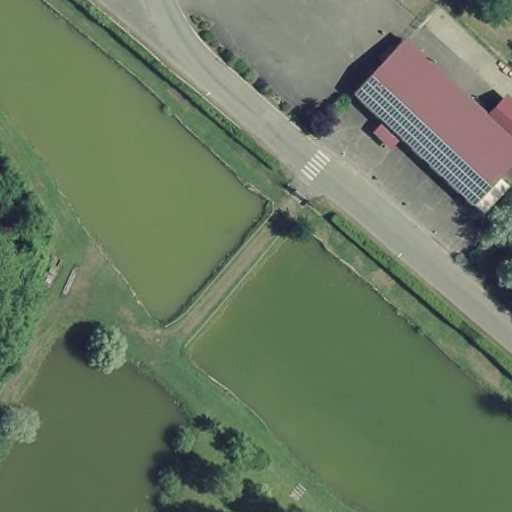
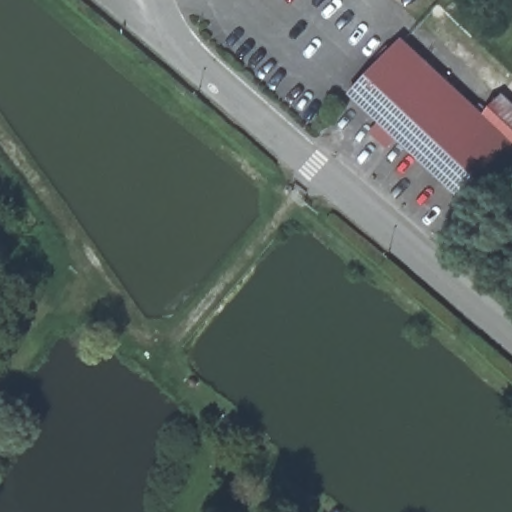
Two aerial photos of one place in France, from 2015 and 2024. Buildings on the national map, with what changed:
unchanged [(480,112),(500,93),(512,105),(512,158),(468,207),(345,93),(402,35),(480,112)]

